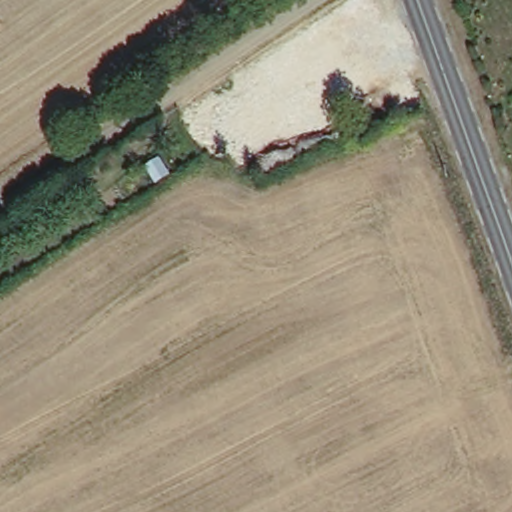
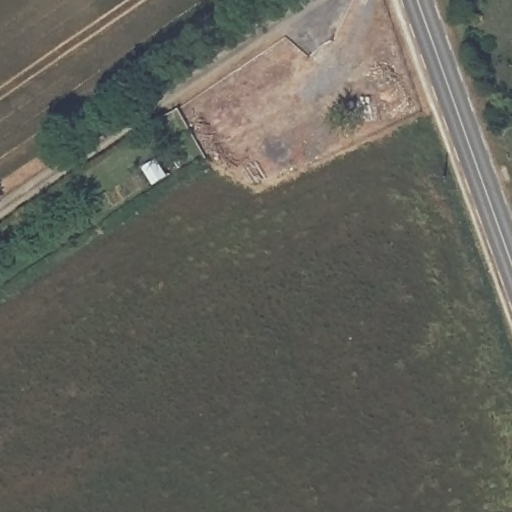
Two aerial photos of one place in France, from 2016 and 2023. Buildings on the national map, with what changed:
[]

